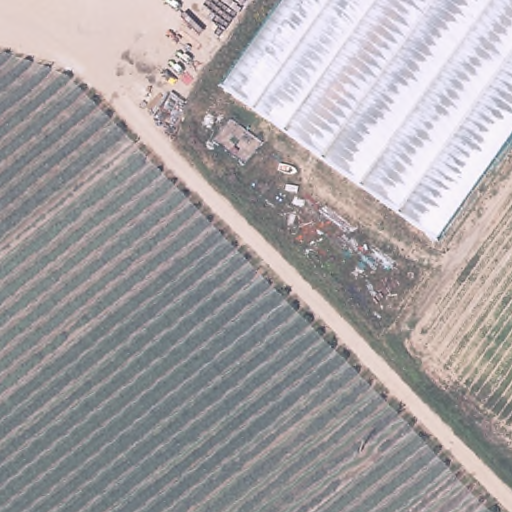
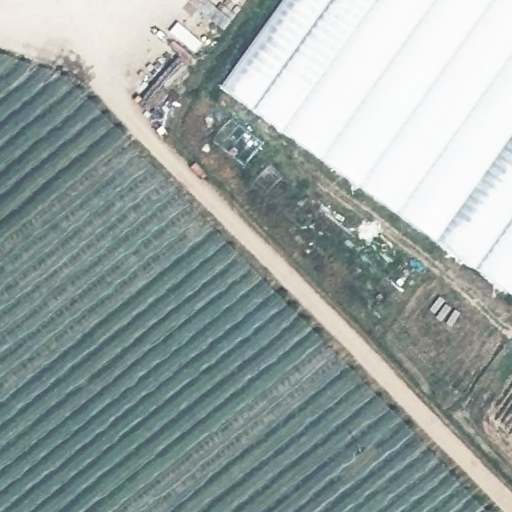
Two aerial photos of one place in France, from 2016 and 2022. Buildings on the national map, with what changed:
unchanged [(512,0),(512,140),(439,242),(227,88),(290,0),(512,0)]
new [(439,242),(512,140),(512,296),(439,242)]

